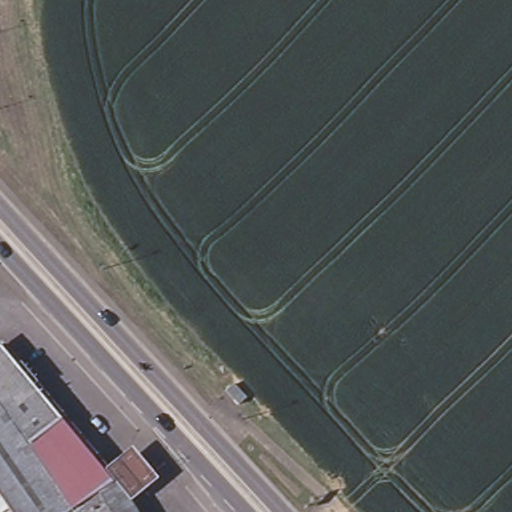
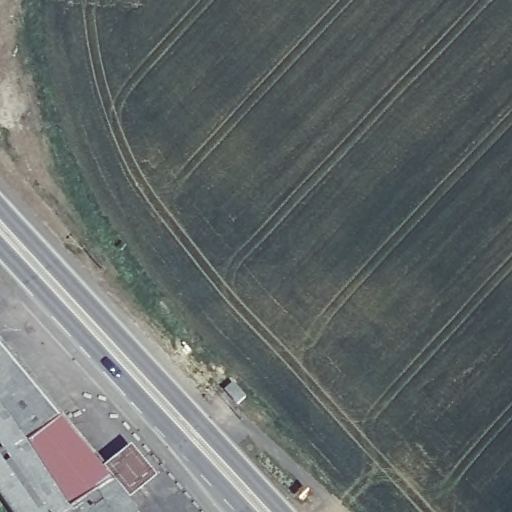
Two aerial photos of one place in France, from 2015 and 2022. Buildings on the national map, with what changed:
unchanged [(0,387),(0,349),(9,342),(70,416),(35,441),(0,387)]
unchanged [(81,512),(61,512),(60,511),(59,512),(20,512),(0,479),(0,387),(35,441),(79,508),(81,512)]
unchanged [(81,512),(79,508),(35,441),(70,416),(107,462),(127,444),(151,471),(131,489),(126,495),(136,512),(81,512)]

